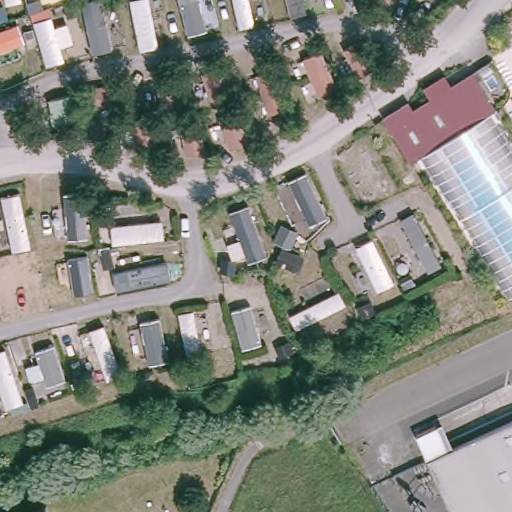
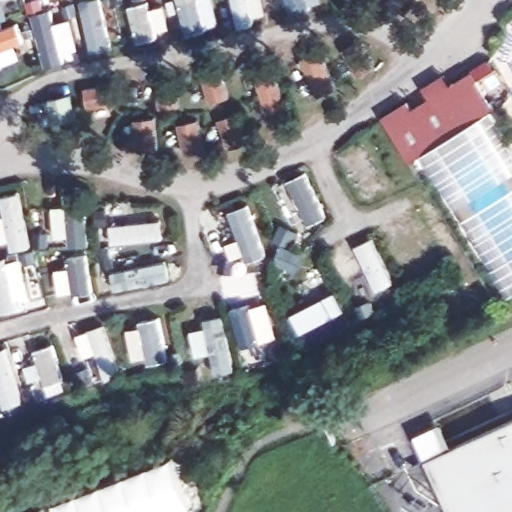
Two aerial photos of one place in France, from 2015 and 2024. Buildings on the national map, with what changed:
unchanged [(410,100),(413,105),(430,95),(423,85),(447,71),(452,81),(473,68),(495,108),(413,159),(385,115),(410,100)]
unchanged [(512,136),(512,295),(507,298),(419,155),(495,108),(512,136)]
unchanged [(420,425),(439,417),(450,442),(512,414),(512,512),(460,512),(420,425)]
new [(192,508),(181,512),(46,512),(43,507),(173,459),(192,508)]
unchanged [(42,504),(45,512),(24,512),(42,504)]

